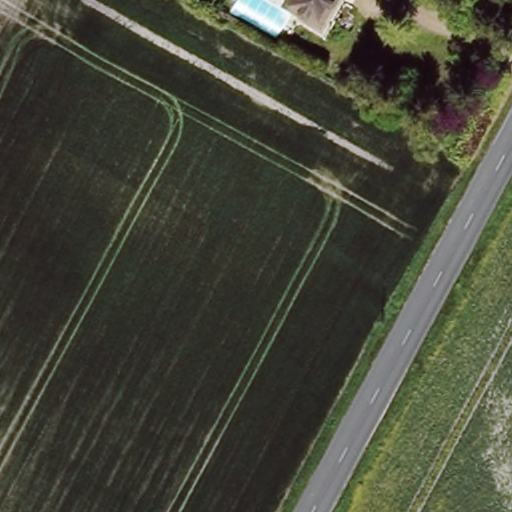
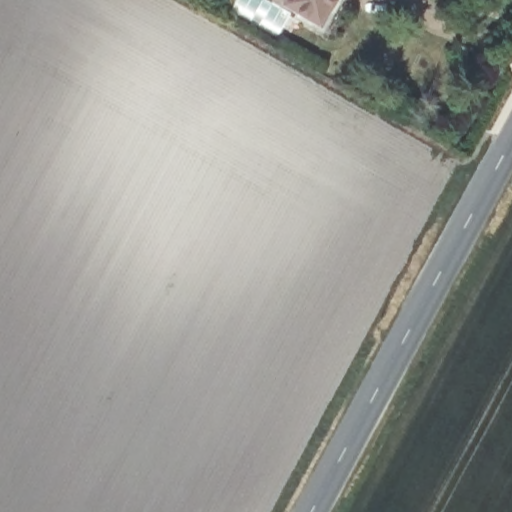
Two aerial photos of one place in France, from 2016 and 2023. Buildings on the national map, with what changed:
unchanged [(321,24),(283,4),(286,0),(334,0),(321,24)]

